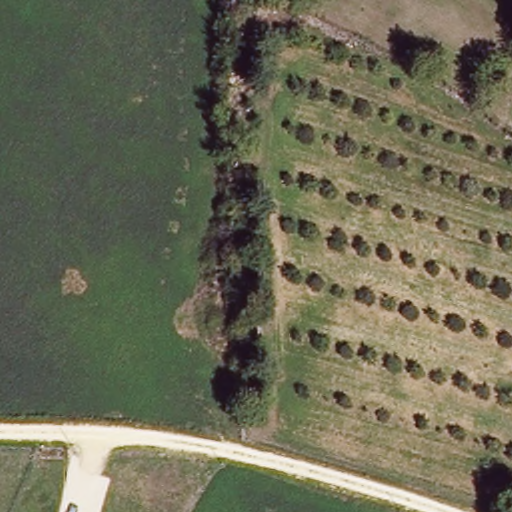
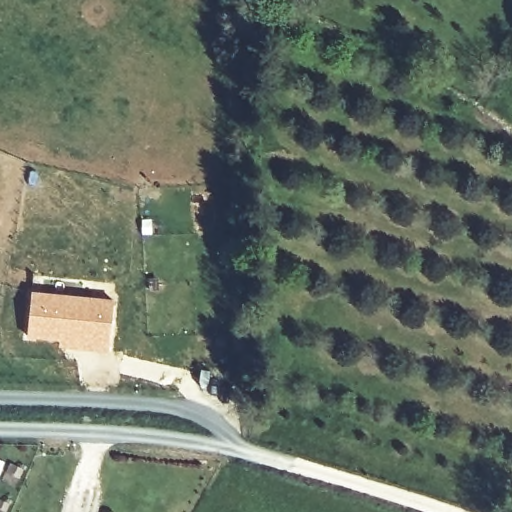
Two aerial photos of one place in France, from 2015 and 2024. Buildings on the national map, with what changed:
new [(31,290),(114,299),(107,353),(69,348),(25,340),(31,290)]

